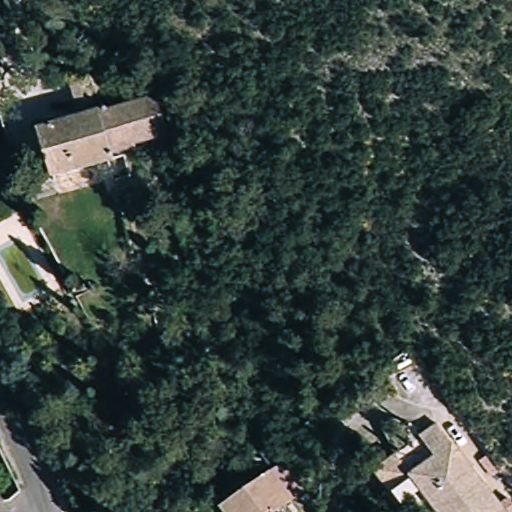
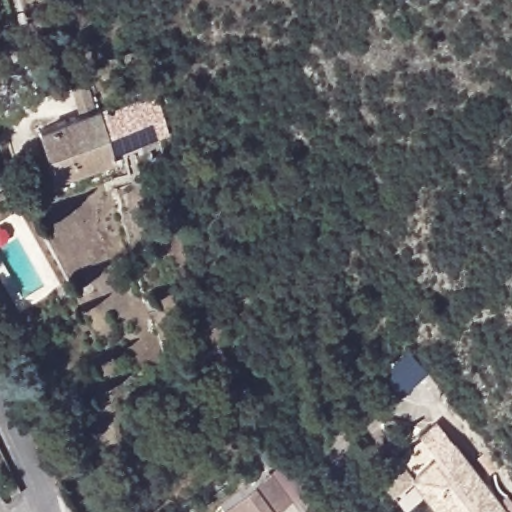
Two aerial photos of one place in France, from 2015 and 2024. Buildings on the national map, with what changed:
unchanged [(157,96),(169,134),(110,151),(113,161),(53,178),(38,129),(80,116),(69,84),(86,79),(96,111),(98,111),(98,114),(157,96)]
unchanged [(424,500),(416,495),(407,502),(380,466),(443,419),(512,510),(512,512),(433,512),(424,500)]
unchanged [(216,507),(264,472),(286,502),(272,512),(220,512),(216,507)]

